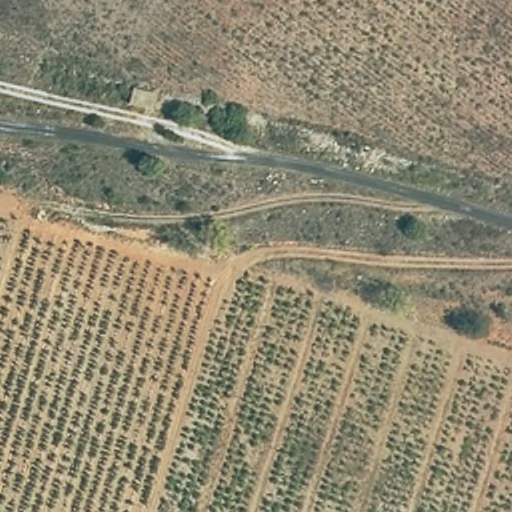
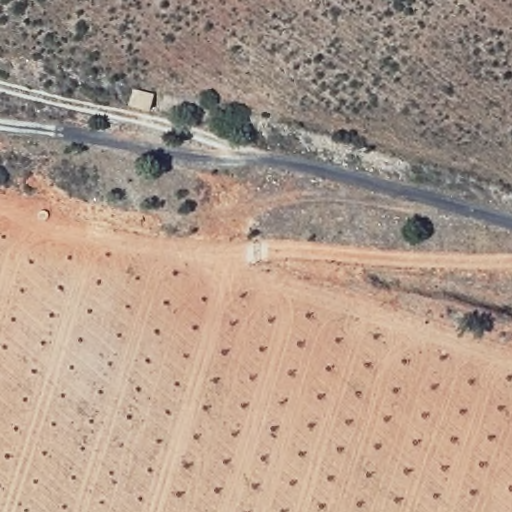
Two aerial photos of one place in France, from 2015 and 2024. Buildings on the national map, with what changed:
unchanged [(131,85),(154,92),(151,109),(129,103),(131,85)]

